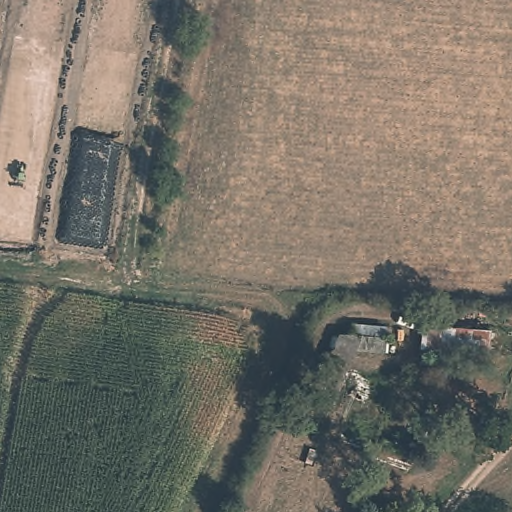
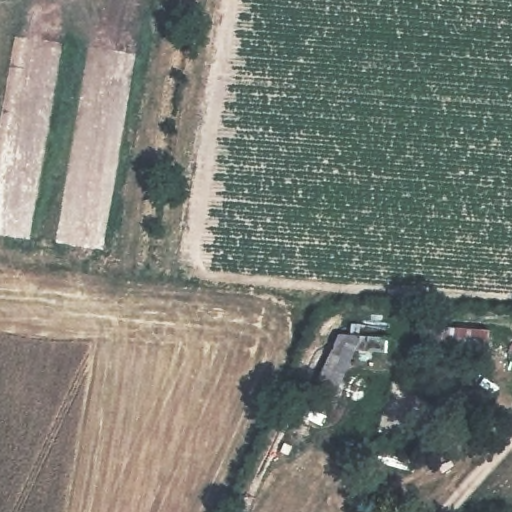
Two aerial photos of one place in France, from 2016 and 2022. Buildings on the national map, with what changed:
unchanged [(422,325),(495,331),(495,354),(420,353),(422,325)]
unchanged [(322,407),(302,397),(332,330),(387,332),(387,350),(351,347),(322,407)]

